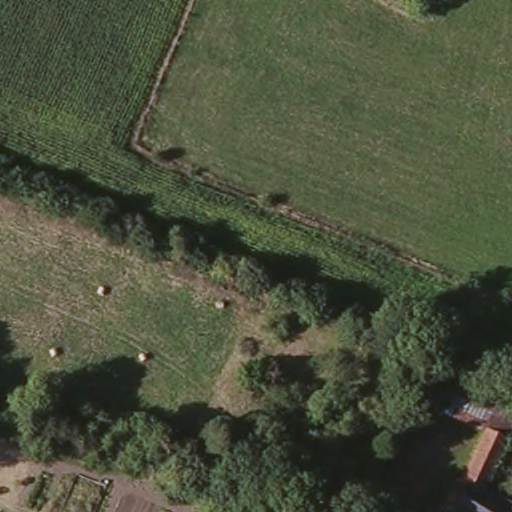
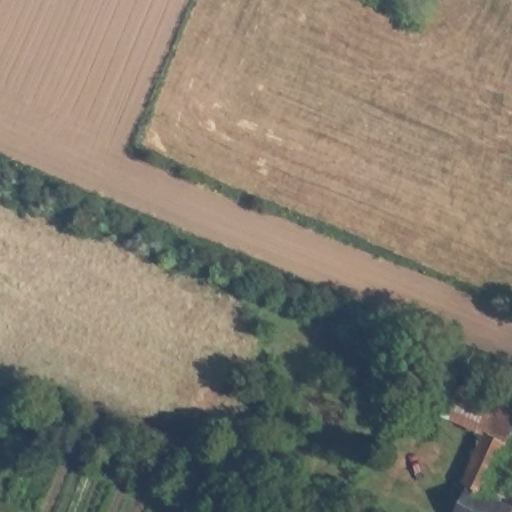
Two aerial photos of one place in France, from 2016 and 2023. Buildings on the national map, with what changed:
unchanged [(484,435),(433,411),(447,379),(512,410),(512,441),(509,447),(484,435)]
unchanged [(512,498),(512,512),(457,512),(444,504),(456,478),(463,480),(484,435),(509,447),(491,486),(512,498)]

